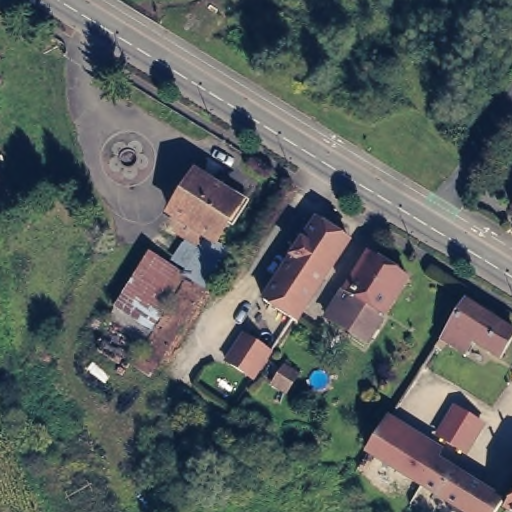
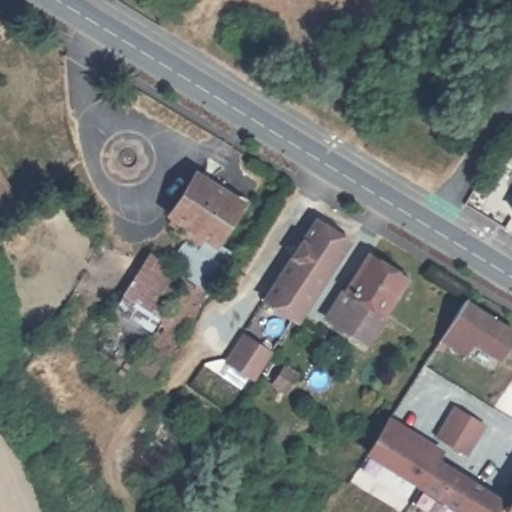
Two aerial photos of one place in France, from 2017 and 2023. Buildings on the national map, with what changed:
unchanged [(21,193),(0,205),(0,163),(21,193)]
unchanged [(185,269),(197,249),(162,230),(195,167),(254,205),(209,286),(185,269)]
unchanged [(297,286),(308,293),(296,310),(263,288),(316,208),(349,230),(324,267),(314,260),(297,286)]
unchanged [(154,383),(133,370),(123,386),(84,359),(151,245),(185,269),(209,286),(154,383)]
unchanged [(331,311),(370,250),(409,275),(369,336),(369,337),(368,340),(329,315),(330,313),(331,311)]
unchanged [(512,321),(512,342),(507,350),(477,332),(468,345),(445,331),(453,318),(469,294),(512,321)]
unchanged [(257,373),(231,355),(248,328),(275,346),(257,373)]
unchanged [(285,364),(296,372),(284,390),(273,382),(285,364)]
unchanged [(486,423),(466,454),(434,435),(452,405),(486,423)]
unchanged [(438,457),(502,495),(492,512),(463,512),(365,455),(389,417),(443,450),(438,457)]

